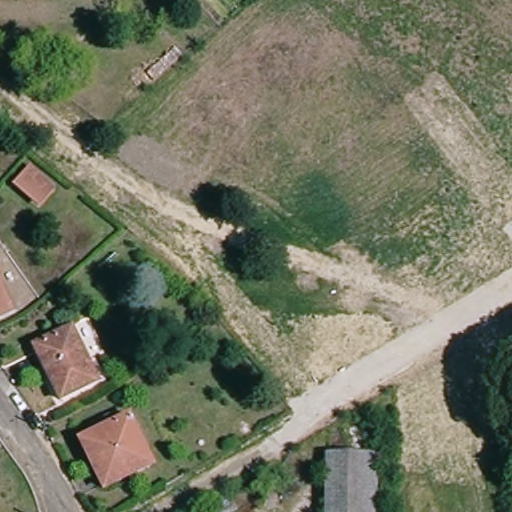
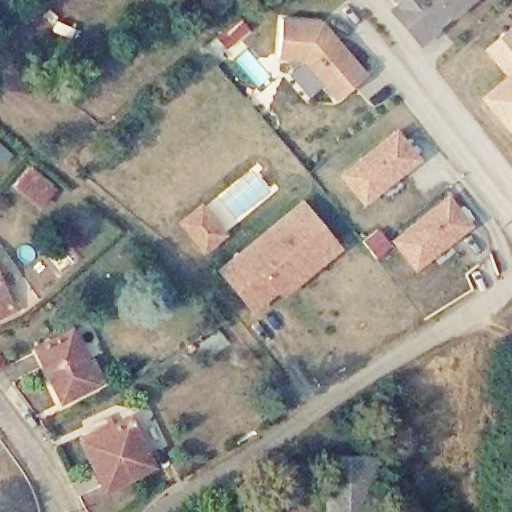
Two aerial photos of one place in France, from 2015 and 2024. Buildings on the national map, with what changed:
new [(446,15),(440,20),(439,30),(418,43),(390,11),(389,4),(386,0),(475,0),(450,21),(446,15)]
new [(320,21),(366,73),(335,99),(300,59),(279,57),(281,17),(320,21)]
new [(512,23),(512,129),(509,131),(479,97),(505,74),(482,49),(512,23)]
new [(419,159),(363,204),(339,175),(395,128),(419,159)]
unchanged [(52,188),(37,205),(15,186),(28,169),(52,188)]
new [(472,224),(414,268),(391,239),(447,194),(472,224)]
new [(340,247),(278,295),(275,292),(253,309),(215,269),(302,196),(340,247)]
new [(175,222),(200,201),(229,233),(204,255),(175,222)]
unchanged [(0,315),(0,284),(12,309),(0,315)]
unchanged [(96,382),(59,401),(34,346),(71,329),(96,382)]
unchanged [(151,466),(104,488),(81,441),(127,419),(151,466)]
unchanged [(373,512),(328,512),(328,459),(375,459),(373,512)]

